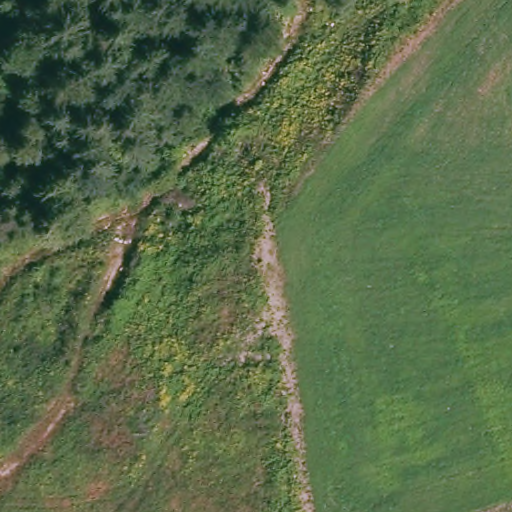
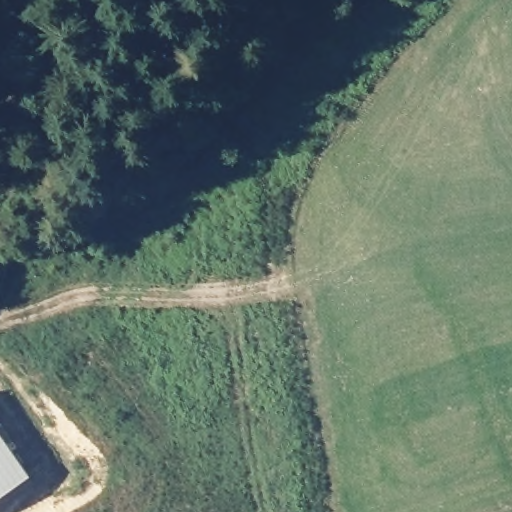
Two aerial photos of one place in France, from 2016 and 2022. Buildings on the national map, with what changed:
new [(28,476),(0,496),(0,435),(28,476)]

